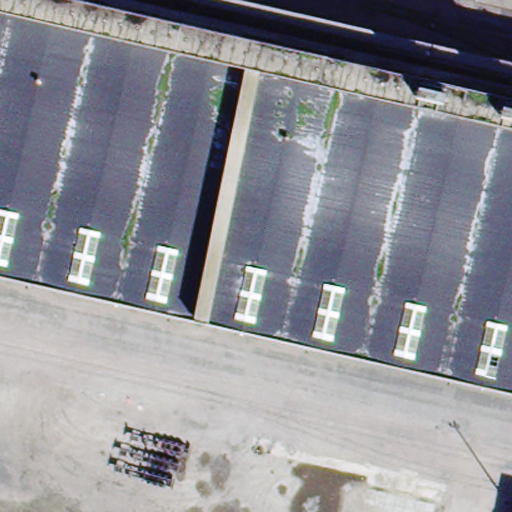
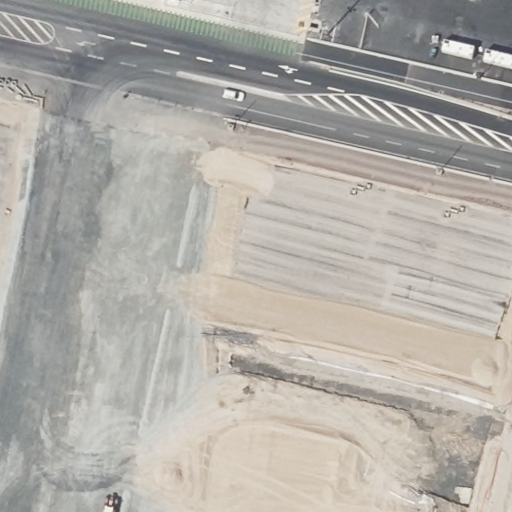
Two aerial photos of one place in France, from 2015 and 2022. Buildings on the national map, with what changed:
demolished [(0,12),(0,0),(111,0),(512,90),(512,128),(0,12)]
demolished [(122,305),(0,279),(0,12),(512,128),(512,394),(122,305)]

